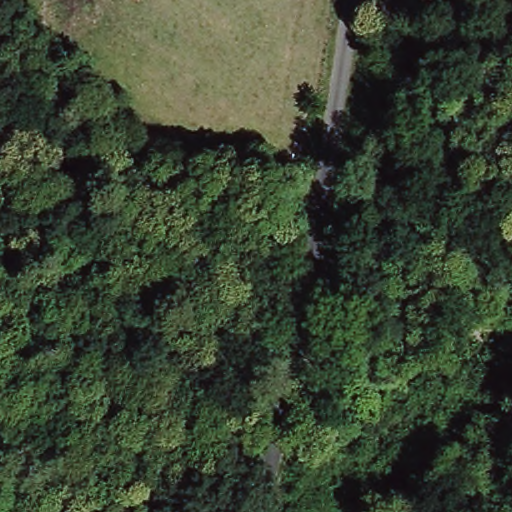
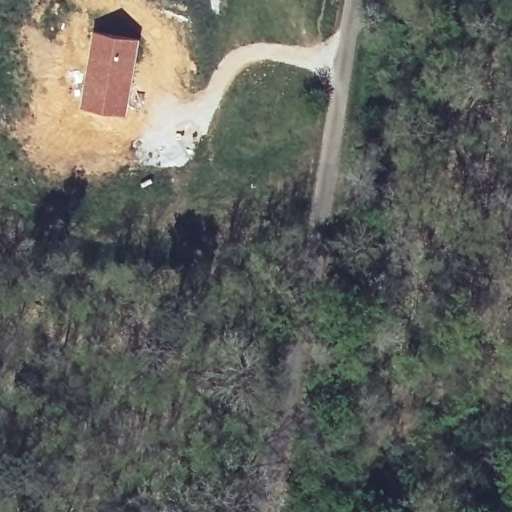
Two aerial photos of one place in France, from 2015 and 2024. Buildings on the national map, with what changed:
new [(92,30),(140,38),(126,116),(79,109),(92,30)]

